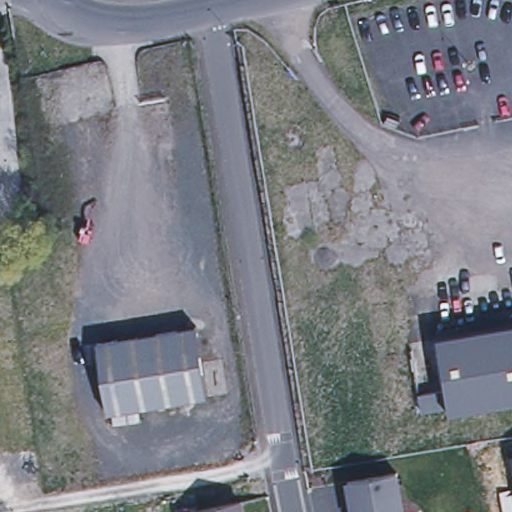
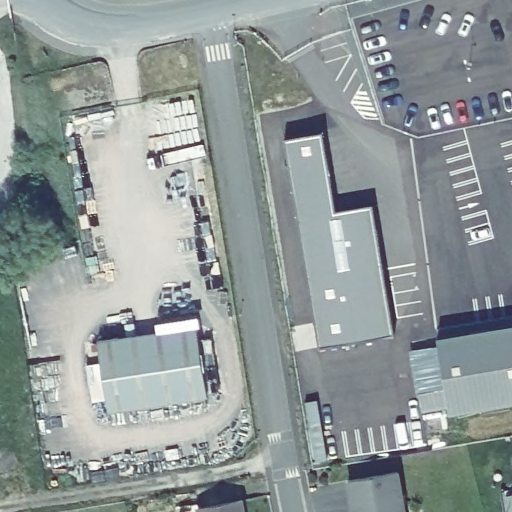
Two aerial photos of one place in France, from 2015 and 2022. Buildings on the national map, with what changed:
new [(334,211),(372,205),(393,334),(320,346),(287,138),(322,133),(334,211)]
unchanged [(432,337),(512,324),(512,401),(445,412),(443,406),(417,411),(413,393),(440,388),(432,337)]
unchanged [(197,325),(208,396),(109,411),(98,341),(197,325)]
unchanged [(397,472),(404,512),(354,512),(348,481),(397,472)]
unchanged [(251,500),(253,512),(210,512),(209,508),(251,500)]
unchanged [(210,512),(189,512),(209,508),(210,512)]

